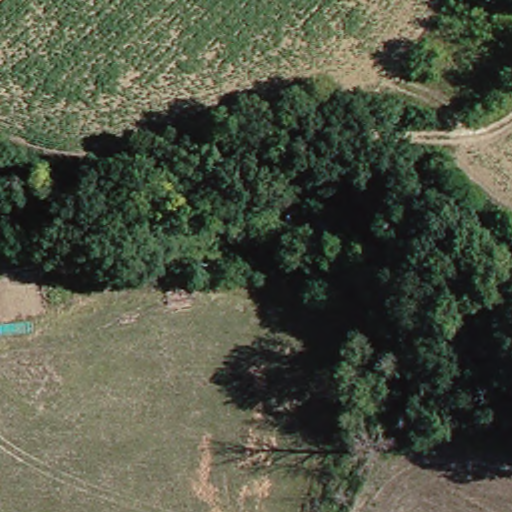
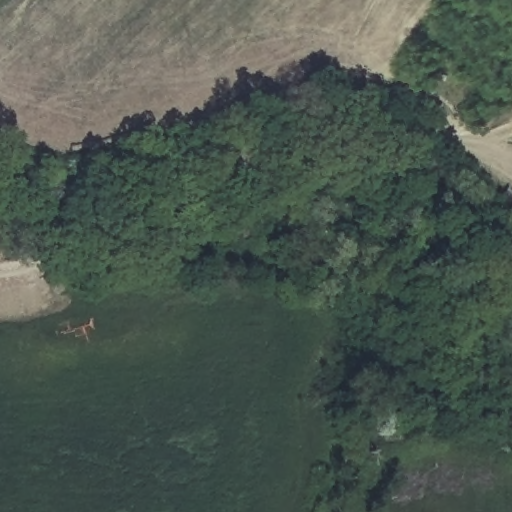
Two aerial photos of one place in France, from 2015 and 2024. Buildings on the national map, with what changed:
unchanged [(512,371),(512,374),(506,389),(471,373),(479,356),(512,371)]

